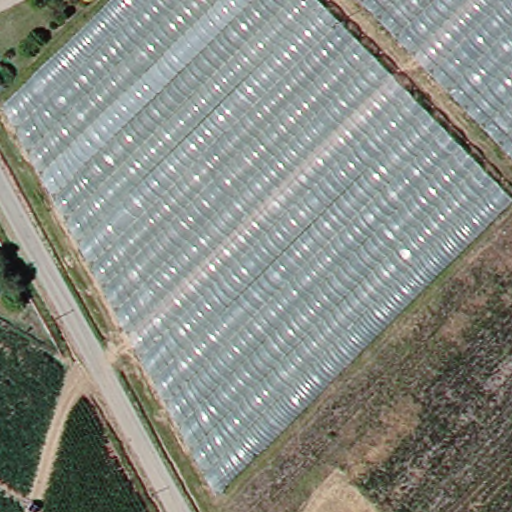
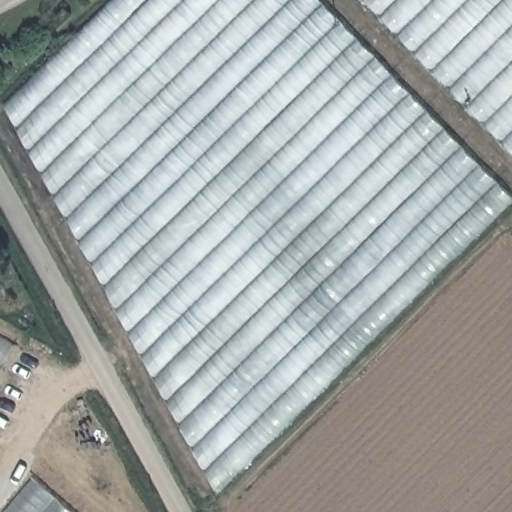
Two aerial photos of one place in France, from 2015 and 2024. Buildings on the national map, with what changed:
unchanged [(119,0),(512,0),(512,196),(221,484),(11,104),(119,0)]
new [(0,333),(11,339),(0,361),(0,333)]
new [(33,480),(71,512),(4,512),(33,480)]

